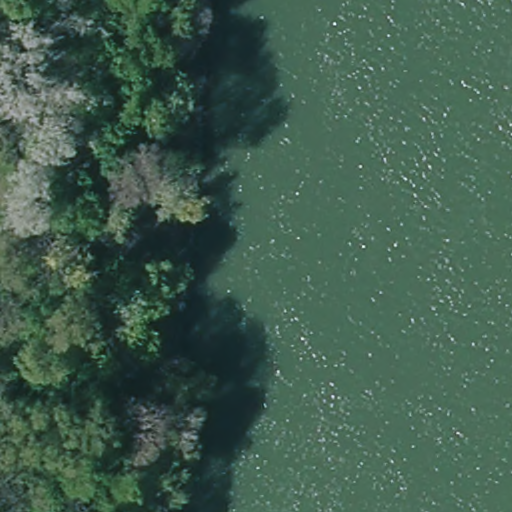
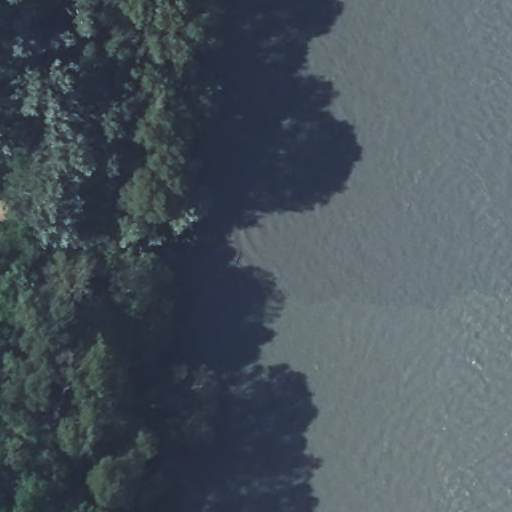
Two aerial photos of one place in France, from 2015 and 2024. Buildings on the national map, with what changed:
unchanged [(6,209),(7,234),(0,233),(0,209),(6,209)]

